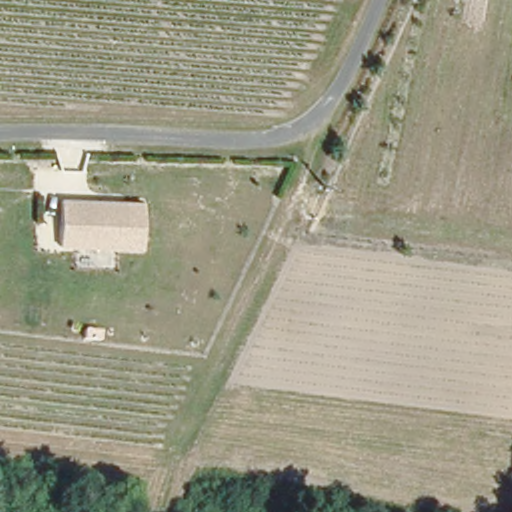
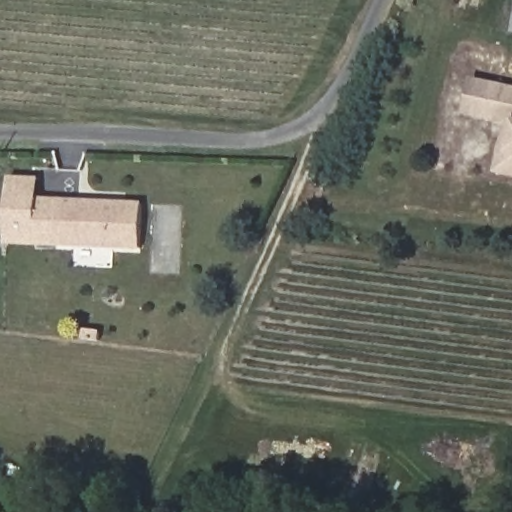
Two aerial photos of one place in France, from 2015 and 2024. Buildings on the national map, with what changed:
new [(495,173),(505,124),(464,116),(472,77),(512,86),(512,177),(495,173)]
new [(8,246),(10,177),(41,178),(41,201),(61,201),(59,248),(8,246)]
unchanged [(143,205),(141,251),(59,248),(61,201),(143,205)]

